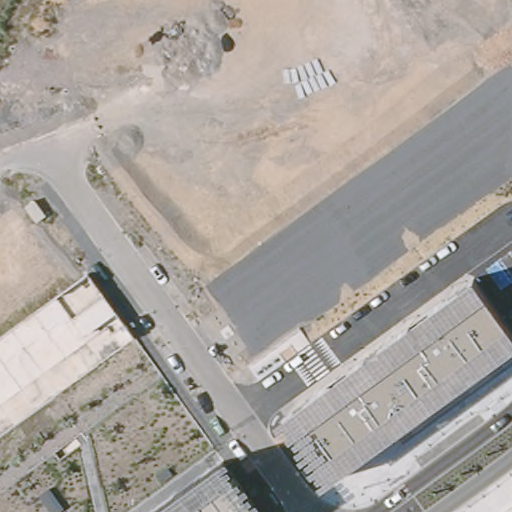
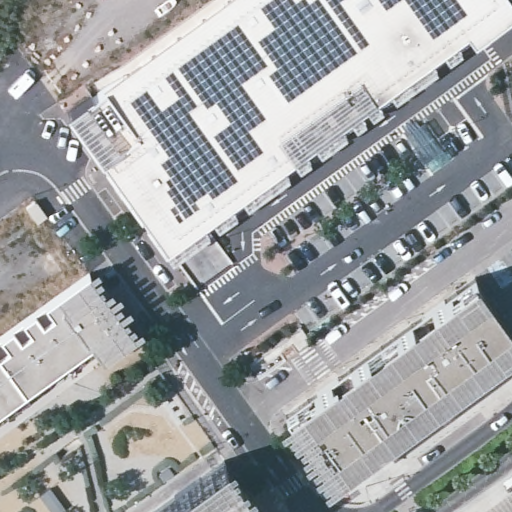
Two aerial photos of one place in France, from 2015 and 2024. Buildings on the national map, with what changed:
new [(512,0),(512,14),(476,41),(467,29),(165,248),(66,110),(219,0),(512,0)]
unchanged [(0,337),(89,272),(134,336),(0,432),(0,337)]
unchanged [(329,482),(279,417),(474,278),(512,330),(512,349),(329,482)]
unchanged [(229,456),(271,512),(154,512),(229,456)]

